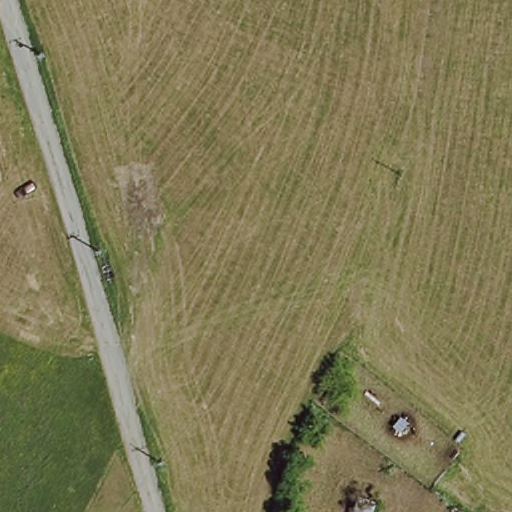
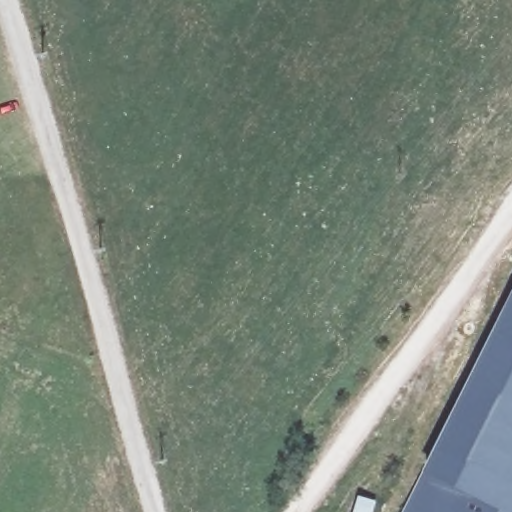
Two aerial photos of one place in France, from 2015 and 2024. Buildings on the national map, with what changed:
new [(425,474),(512,297),(512,512),(405,512),(425,474)]
new [(375,504),(372,512),(356,512),(360,499),(375,504)]

